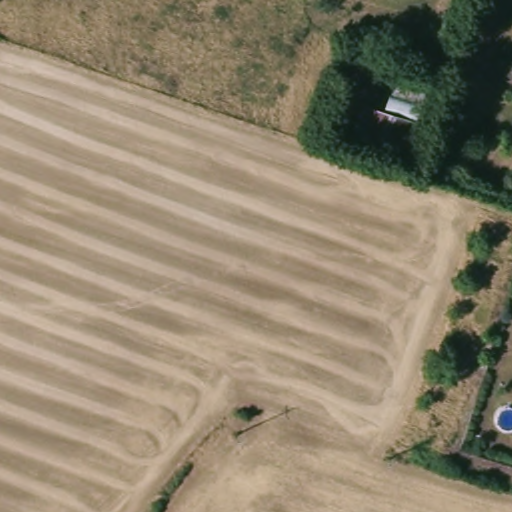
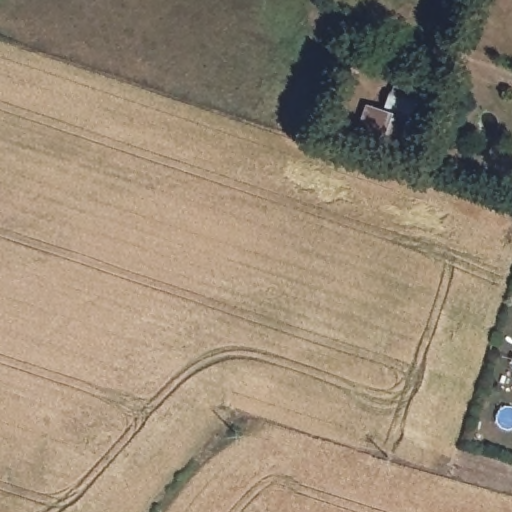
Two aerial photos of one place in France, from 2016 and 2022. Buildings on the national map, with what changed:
unchanged [(405,154),(353,140),(364,106),(384,110),(387,93),(390,94),(397,73),(424,81),(405,154)]

